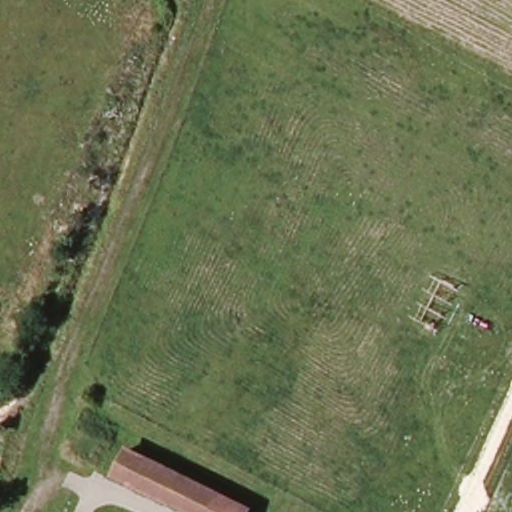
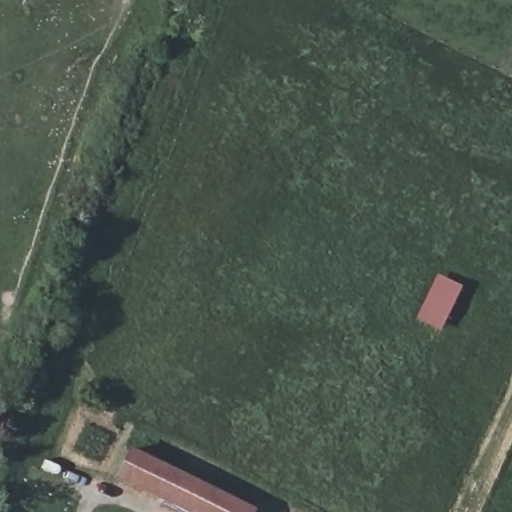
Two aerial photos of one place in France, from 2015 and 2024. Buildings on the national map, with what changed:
new [(437,273),(461,285),(439,331),(415,319),(437,273)]
unchanged [(196,512),(124,476),(133,451),(255,508),(253,512),(196,512)]

